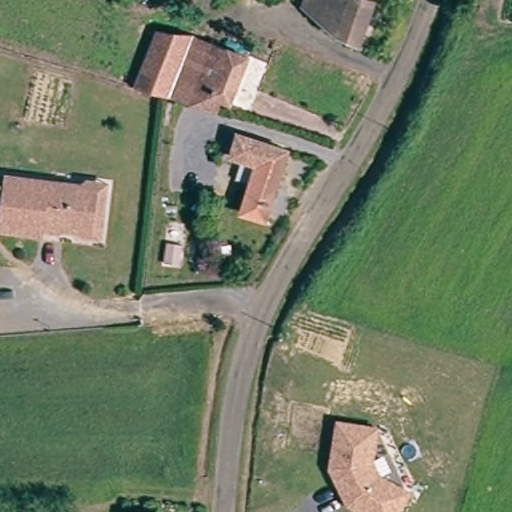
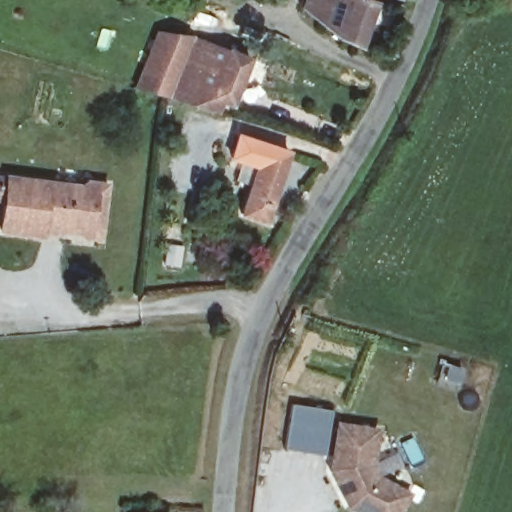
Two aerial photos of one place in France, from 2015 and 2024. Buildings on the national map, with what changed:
unchanged [(325,34),(301,4),(303,0),(358,0),(368,4),(353,46),(325,34)]
unchanged [(158,30),(177,34),(210,43),(250,56),(237,104),(228,100),(225,112),(174,98),(141,87),(158,30)]
unchanged [(295,151),(265,224),(240,214),(260,163),(232,152),(242,132),(295,151)]
unchanged [(107,181),(102,239),(82,237),(83,228),(57,226),(56,234),(41,231),(41,236),(0,232),(3,201),(0,201),(0,176),(5,176),(88,185),(88,179),(107,181)]
new [(285,449),(290,404),(329,409),(323,454),(285,449)]
unchanged [(403,512),(353,512),(346,508),(330,469),(338,420),(380,426),(375,462),(382,477),(412,493),(403,512)]

